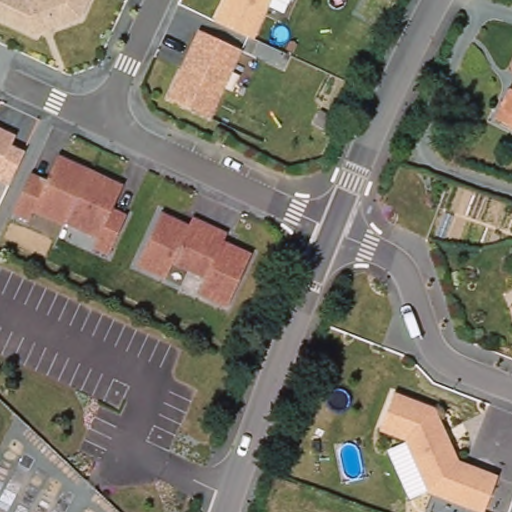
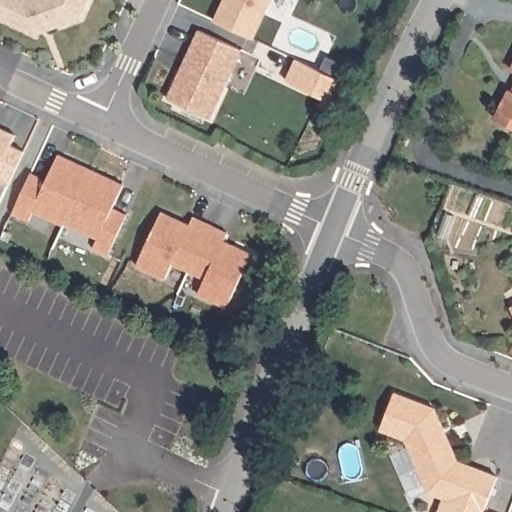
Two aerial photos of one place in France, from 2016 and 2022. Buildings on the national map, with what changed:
unchanged [(0,0),(91,0),(85,14),(64,21),(40,30),(0,11),(0,0)]
unchanged [(223,0),(271,0),(253,39),(213,21),(223,0)]
unchanged [(242,50),(210,119),(167,99),(198,30),(242,50)]
new [(297,60),(340,80),(330,101),(287,81),(297,60)]
unchanged [(504,119),(512,104),(512,122),(504,119)]
unchanged [(0,163),(0,123),(15,130),(0,163)]
unchanged [(129,215),(114,247),(113,250),(97,242),(102,233),(70,218),(69,220),(38,206),(33,216),(17,208),(33,172),(34,172),(35,168),(51,175),(63,150),(95,165),(128,180),(117,204),(131,210),(129,215)]
unchanged [(0,199),(0,176),(8,181),(0,199)]
unchanged [(203,289),(210,273),(177,258),(170,274),(141,261),(157,227),(166,207),(194,220),(197,212),(215,220),(232,228),(229,236),(256,249),(232,302),(203,289)]
unchanged [(509,307),(512,305),(512,313),(509,307)]
unchanged [(439,432),(444,442),(448,441),(458,462),(498,477),(485,512),(482,512),(433,493),(410,441),(385,431),(398,395),(434,409),(444,431),(439,432)]

